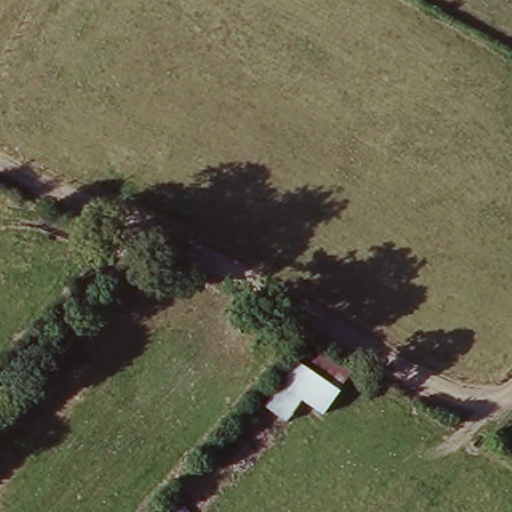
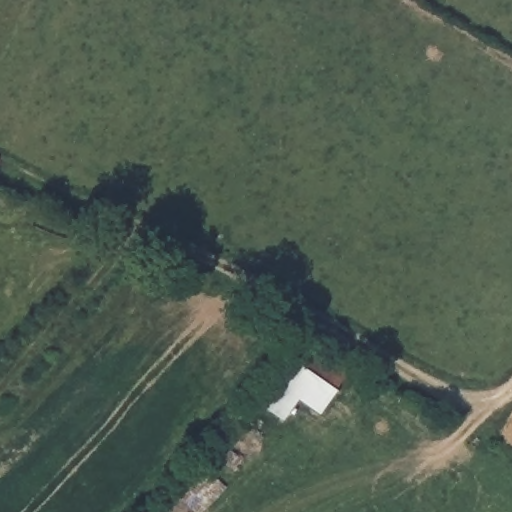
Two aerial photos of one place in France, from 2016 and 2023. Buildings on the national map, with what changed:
unchanged [(349,373),(323,413),(300,398),(285,419),(261,401),(310,347),(349,373)]

